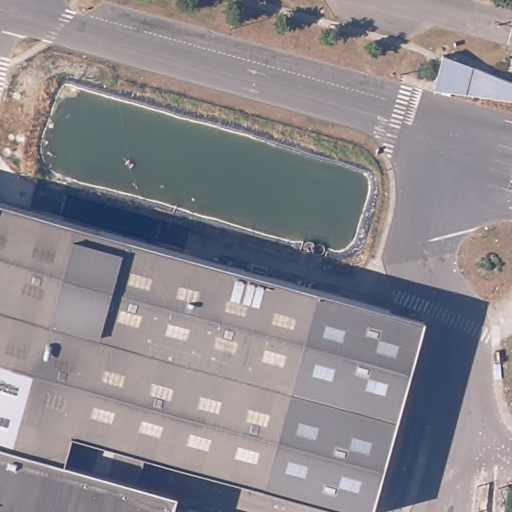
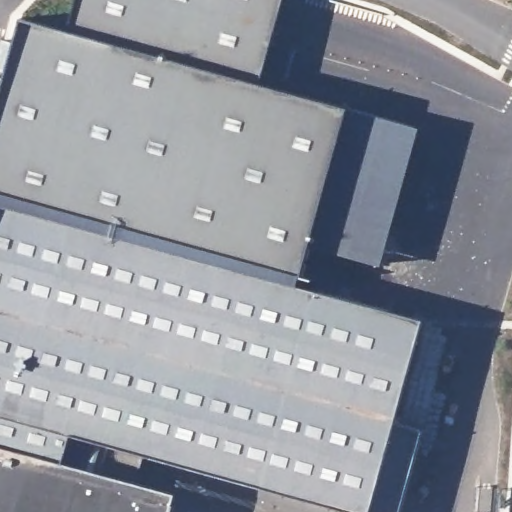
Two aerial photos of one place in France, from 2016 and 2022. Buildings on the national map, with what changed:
new [(70,30),(78,0),(283,0),(259,83),(347,108),(412,126),(375,260),(310,243),(299,282),(0,202),(0,92),(21,17),(70,30)]
demolished [(473,94),(475,88),(468,87),(471,75),(478,77),(480,71),(506,82),(501,98),(473,94)]
unchanged [(340,293),(407,311),(417,314),(403,362),(366,506),(354,503),(142,447),(131,482),(171,492),(165,512),(127,512),(66,496),(0,478),(0,202),(340,293)]
new [(388,419),(423,427),(400,512),(378,512),(366,506),(388,419)]
unchanged [(66,496),(127,512),(0,512),(0,478),(66,496)]

